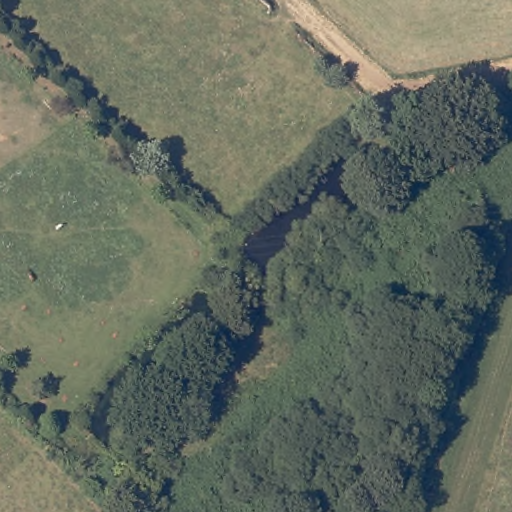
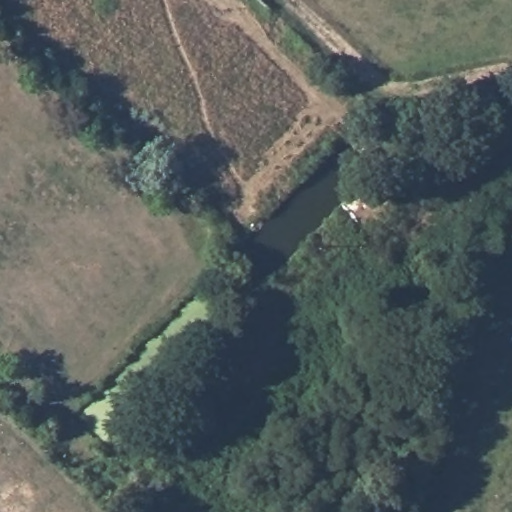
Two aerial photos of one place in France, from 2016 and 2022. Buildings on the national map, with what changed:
[]

